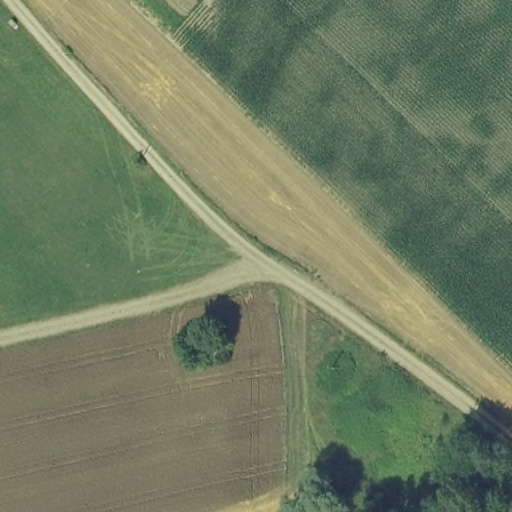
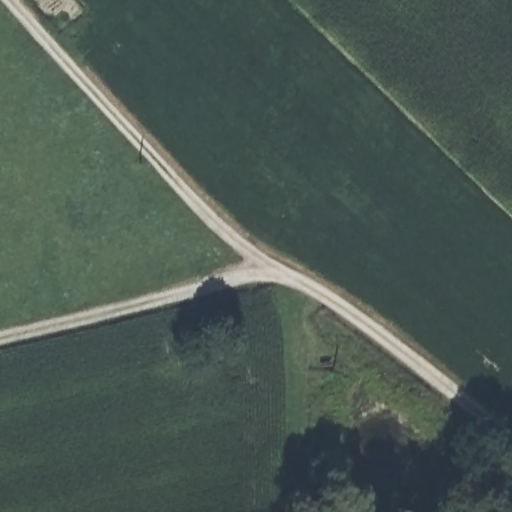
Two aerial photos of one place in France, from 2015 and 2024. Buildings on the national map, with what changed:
unchanged [(235,329),(238,353),(201,359),(202,334),(235,329)]

